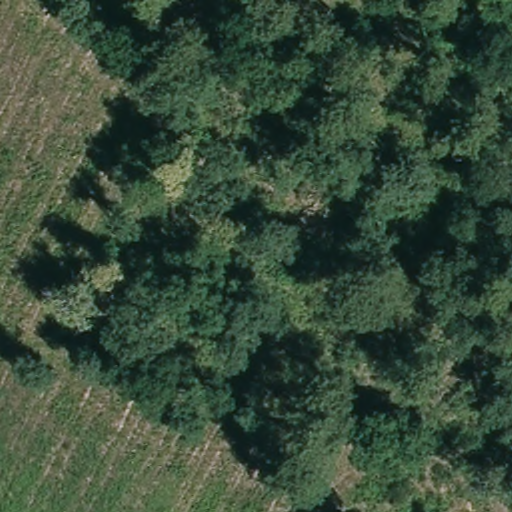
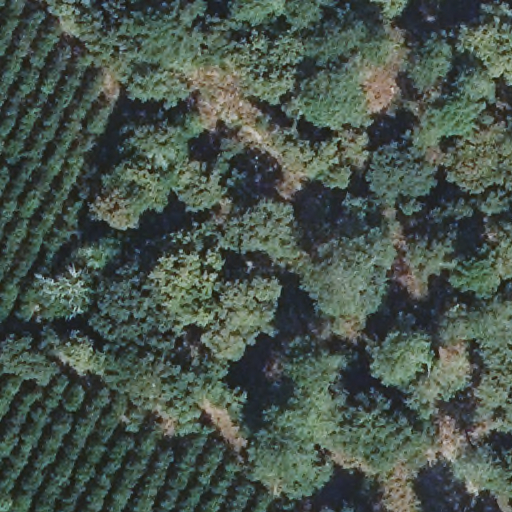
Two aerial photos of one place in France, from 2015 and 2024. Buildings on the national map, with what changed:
unchanged [(426,0),(429,2),(398,55),(343,19),(354,0),(426,0)]
unchanged [(512,215),(512,286),(469,248),(499,204),(512,215)]

